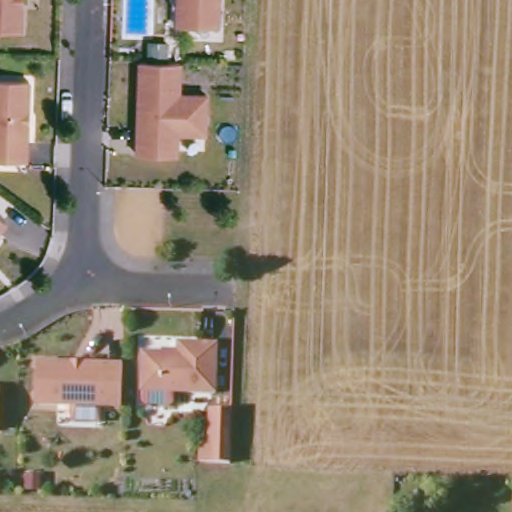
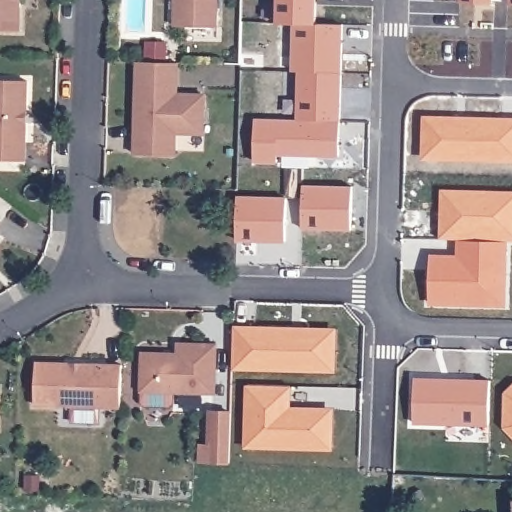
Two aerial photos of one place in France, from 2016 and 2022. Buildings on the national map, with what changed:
unchanged [(18,3),(21,7),(20,34),(0,34),(0,0),(18,0),(18,3)]
unchanged [(216,29),(175,28),(176,0),(217,0),(216,29)]
new [(278,0),(318,0),(318,25),(296,24),(278,24),(278,0)]
new [(296,24),(318,25),(344,26),(343,74),(300,73),(294,73),(296,24)]
unchanged [(178,61),(178,93),(206,93),(204,132),(177,131),(176,154),(136,153),(137,118),(147,118),(148,97),(138,97),(138,60),(178,61)]
new [(300,73),(343,74),(341,122),(299,121),(300,73)]
unchanged [(28,83),(27,113),(23,117),(23,121),(26,125),(25,163),(0,162),(0,82),(28,83)]
new [(258,119),(299,121),(341,122),(341,157),(280,155),(279,163),(256,162),(258,119)]
new [(433,124),(454,125),(459,130),(466,130),(466,119),(512,121),(512,162),(432,159),(425,152),(426,131),(433,124)]
new [(290,169),(304,169),(304,184),(304,198),(289,198),(289,183),(290,169)]
new [(305,186),(354,188),(353,231),(304,230),(305,186)]
new [(450,222),(450,214),(444,214),(445,192),(512,194),(512,242),(508,242),(463,241),(444,240),(444,222),(450,222)]
new [(239,196),(288,198),(287,240),(238,239),(239,196)]
unchanged [(6,213),(0,222),(0,209),(6,213)]
new [(433,258),(463,259),(463,241),(508,242),(507,306),(431,304),(432,272),(433,258)]
new [(234,326),(334,330),(331,373),(233,369),(234,326)]
unchanged [(142,393),(143,354),(169,354),(171,357),(178,357),(178,344),(217,344),(216,393),(142,393)]
unchanged [(36,406),(37,363),(71,364),(74,367),(81,367),(84,364),(123,365),(122,408),(36,406)]
new [(416,379),(443,380),(443,384),(475,385),(476,381),(492,381),(491,426),(415,424),(416,379)]
new [(244,386),(292,386),(293,407),(333,408),(331,451),(243,449),(244,386)]
new [(512,394),(512,434),(507,428),(508,398),(512,394)]
unchanged [(231,463),(203,462),(203,444),(213,445),(213,412),(233,412),(231,463)]

